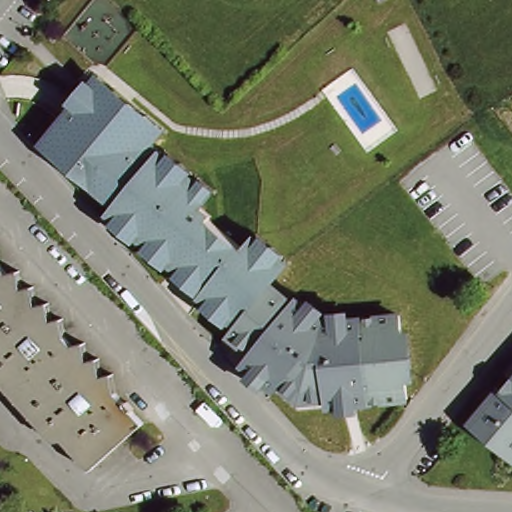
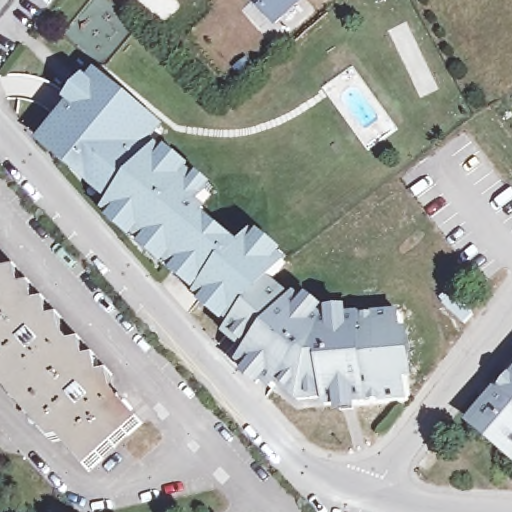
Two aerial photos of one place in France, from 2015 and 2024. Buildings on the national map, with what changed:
new [(274,26),(250,0),(303,0),(274,26)]
unchanged [(85,84),(96,93),(149,137),(140,149),(148,156),(198,197),(187,211),(196,218),(198,220),(195,224),(230,252),(241,240),(260,257),(273,268),(272,269),(256,287),(224,327),(222,329),(190,302),(194,298),(100,218),(108,207),(35,146),(85,84)]
unchanged [(1,270),(9,278),(20,276),(23,293),(34,292),(37,309),(48,308),(51,325),(62,323),(66,342),(72,350),(84,348),(87,365),(98,364),(101,382),(111,380),(116,399),(142,429),(90,476),(63,446),(53,449),(0,388),(0,263),(1,270)]
unchanged [(222,329),(224,327),(256,287),(260,290),(280,307),(283,303),(303,321),(308,325),(309,326),(372,320),(385,318),(385,320),(392,400),(320,406),(318,401),(290,403),(269,385),(263,392),(232,366),(241,355),(218,334),(222,329)]
unchanged [(512,377),(512,380),(510,379),(512,377)]
unchanged [(474,428),(504,393),(508,396),(512,391),(512,460),(481,434),(474,428)]

